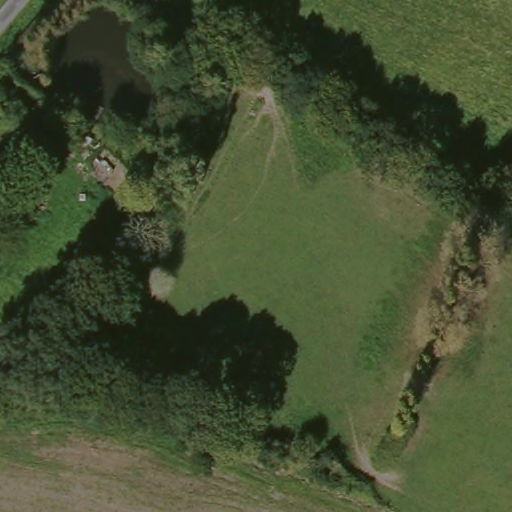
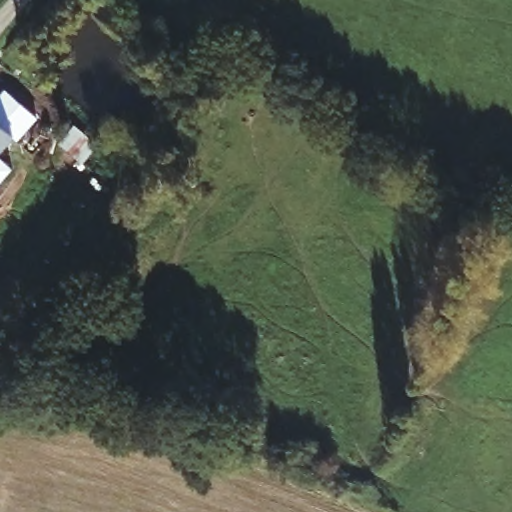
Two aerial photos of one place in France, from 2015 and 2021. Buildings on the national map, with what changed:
new [(8,94),(34,117),(13,136),(15,139),(0,152),(0,104),(8,94)]
new [(11,168),(0,180),(0,159),(11,168)]

